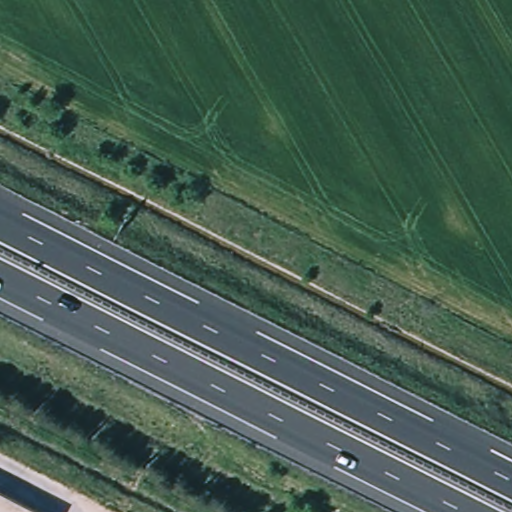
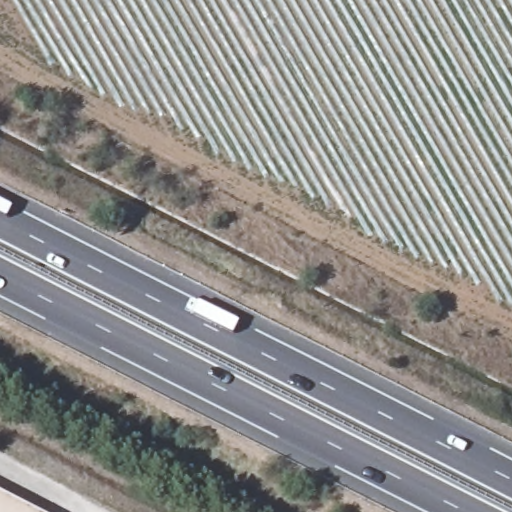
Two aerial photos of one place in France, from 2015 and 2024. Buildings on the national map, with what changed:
unchanged [(0,512),(0,491),(38,512),(0,512)]

